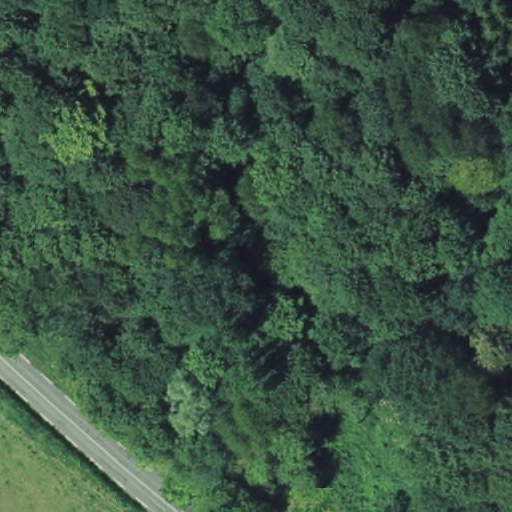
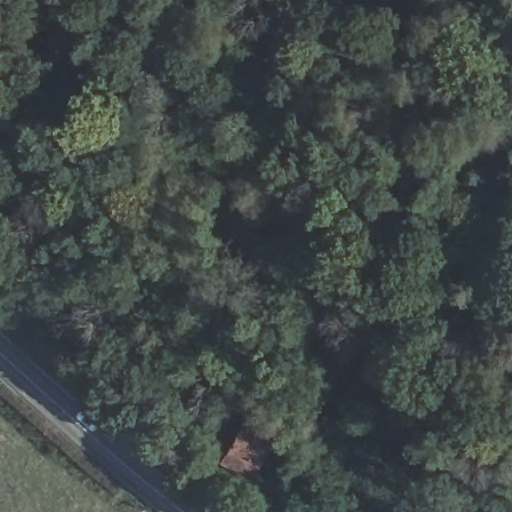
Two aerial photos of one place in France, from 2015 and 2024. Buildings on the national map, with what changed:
unchanged [(240,427),(263,441),(252,459),(241,478),(217,463),(229,444),(240,427)]

